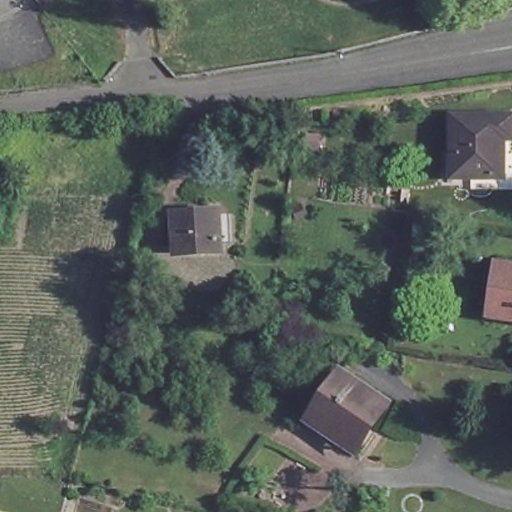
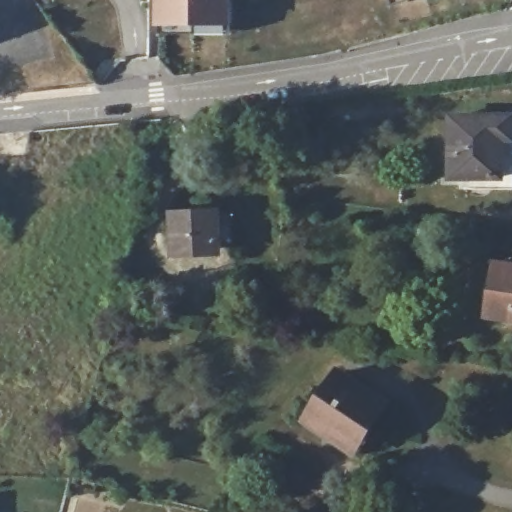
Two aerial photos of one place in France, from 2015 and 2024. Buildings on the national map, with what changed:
new [(231,0),(231,33),(160,32),(160,0),(231,0)]
unchanged [(506,180),(455,177),(457,118),(509,119),(506,180)]
unchanged [(229,235),(211,237),(211,246),(167,251),(163,216),(227,210),(229,235)]
unchanged [(488,314),(495,262),(512,265),(512,318),(488,314)]
unchanged [(384,396),(367,425),(375,430),(360,453),(309,420),(343,369),(384,396)]

